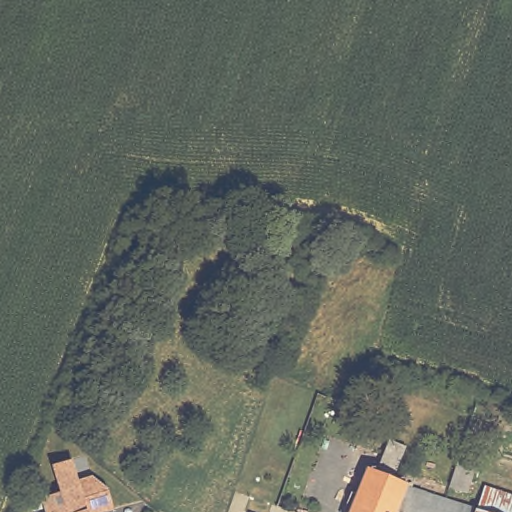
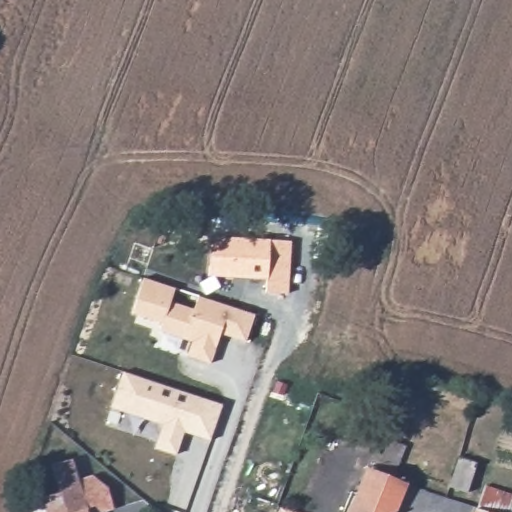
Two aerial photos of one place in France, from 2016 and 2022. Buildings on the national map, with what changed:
new [(143,277),(175,288),(170,302),(194,310),(199,295),(256,314),(247,342),(221,333),(211,363),(188,356),(193,342),(159,331),(162,323),(131,313),(143,277)]
new [(177,455),(157,448),(164,425),(112,408),(124,372),(225,405),(213,441),(193,435),(185,432),(177,455)]
unchanged [(378,471),(389,440),(407,447),(396,477),(408,481),(407,485),(478,510),(485,489),(512,498),(512,512),(352,512),(367,467),(378,471)]
unchanged [(57,495),(51,466),(71,461),(78,480),(93,476),(111,493),(114,511),(113,512),(43,512),(40,499),(57,495)]
unchanged [(459,466),(476,472),(467,498),(450,491),(459,466)]

